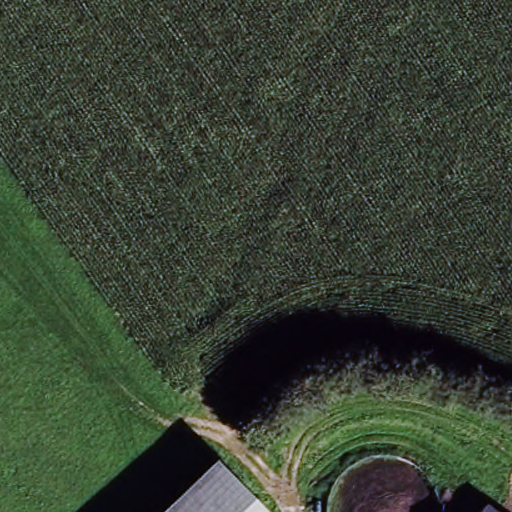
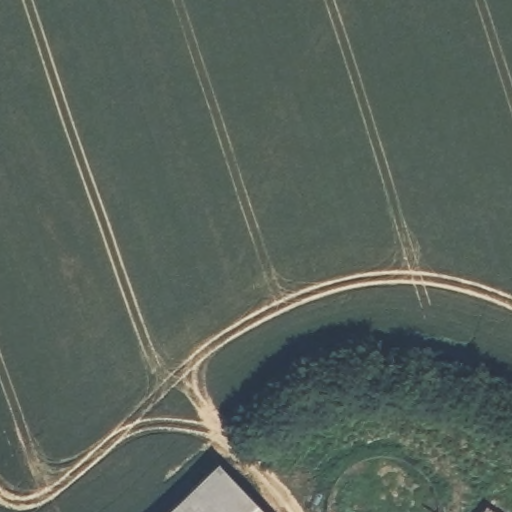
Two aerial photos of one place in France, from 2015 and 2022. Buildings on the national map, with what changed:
unchanged [(266,512),(168,512),(218,464),(266,512)]
unchanged [(494,512),(483,512),(486,507),(494,512)]

